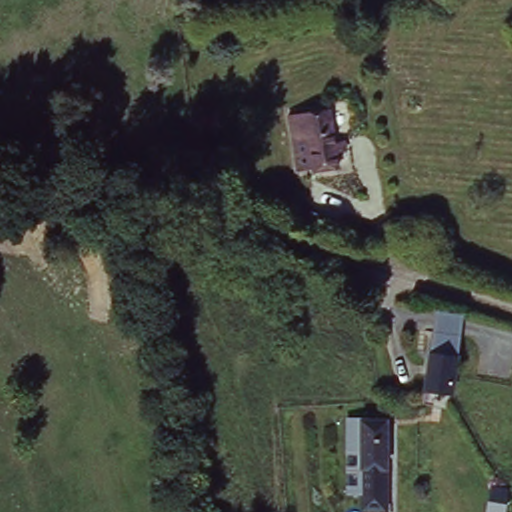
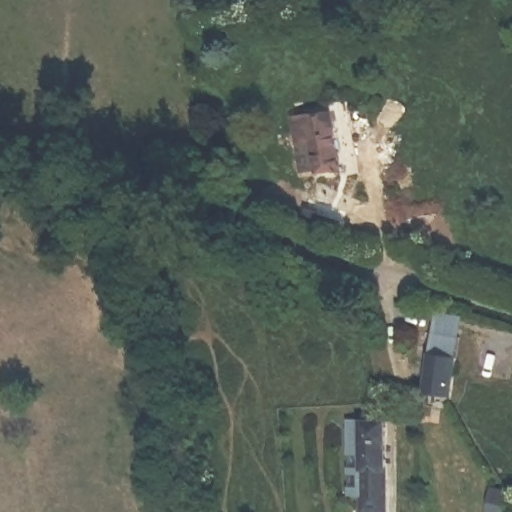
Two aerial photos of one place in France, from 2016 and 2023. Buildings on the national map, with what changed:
unchanged [(292,112),(331,108),(336,165),(317,166),(297,167),(293,132),(292,112)]
unchanged [(466,317),(457,374),(430,369),(440,312),(466,317)]
unchanged [(360,423),(360,421),(385,419),(387,509),(361,509),(361,438),(352,438),(351,424),(360,423)]
unchanged [(508,486),(504,512),(491,512),(487,512),(491,484),(508,486)]

